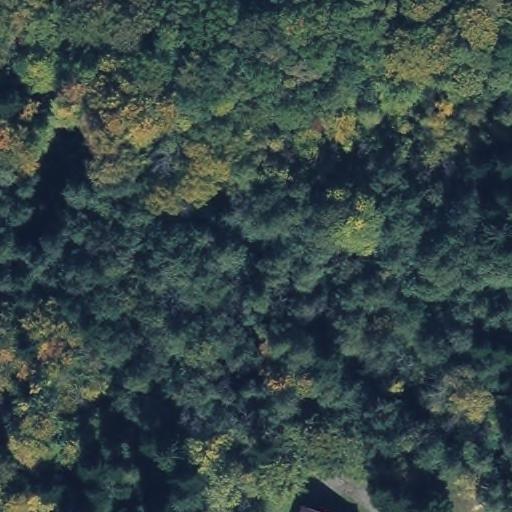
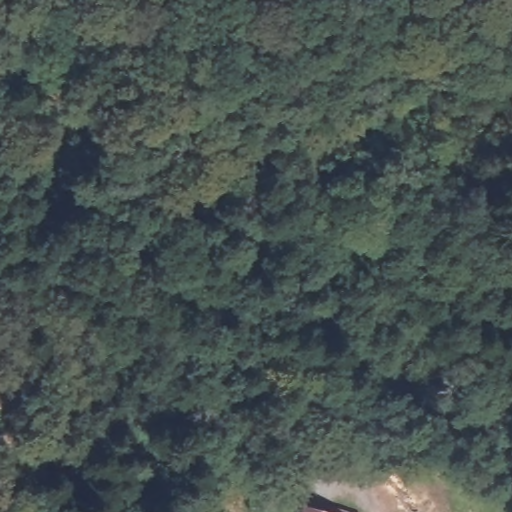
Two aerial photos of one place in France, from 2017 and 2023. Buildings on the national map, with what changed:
unchanged [(290,512),(294,501),(333,512),(290,512)]

